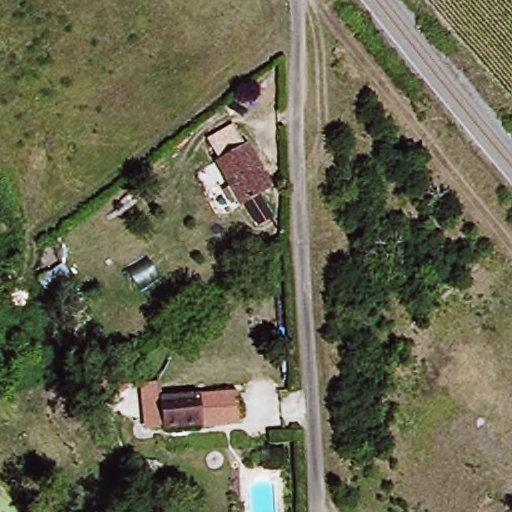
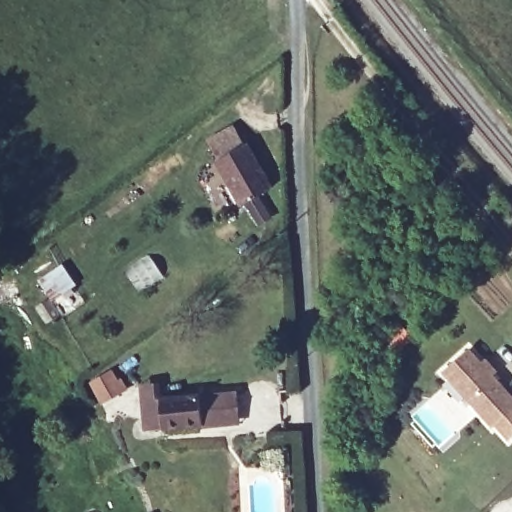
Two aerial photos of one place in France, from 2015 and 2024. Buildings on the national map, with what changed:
unchanged [(190,143),(218,122),(270,187),(242,210),(190,143)]
new [(487,361),(499,372),(495,376),(512,395),(512,439),(497,424),(495,427),(446,374),(470,350),(484,364),(487,361)]
unchanged [(205,427),(194,428),(193,423),(155,428),(152,396),(229,387),(231,403),(234,424),(205,427)]

